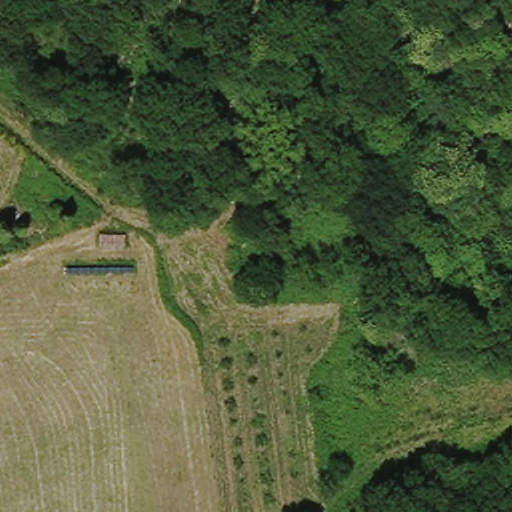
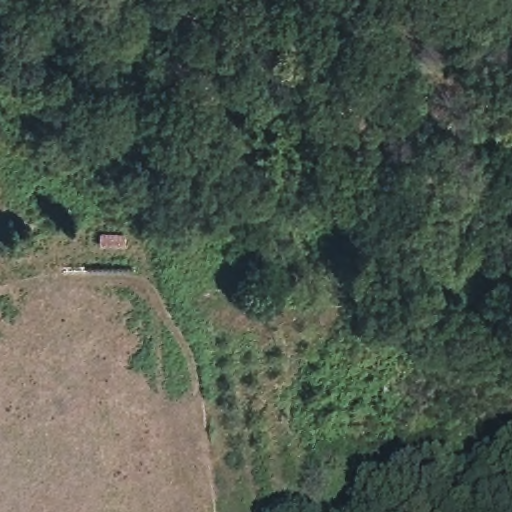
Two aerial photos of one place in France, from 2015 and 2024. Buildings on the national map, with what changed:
unchanged [(98,234),(128,234),(128,248),(98,247),(98,234)]

